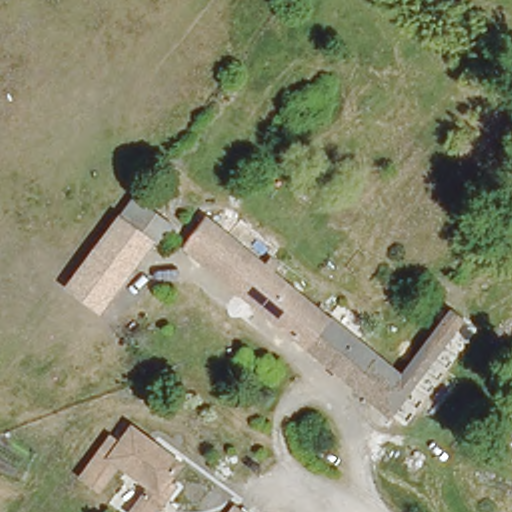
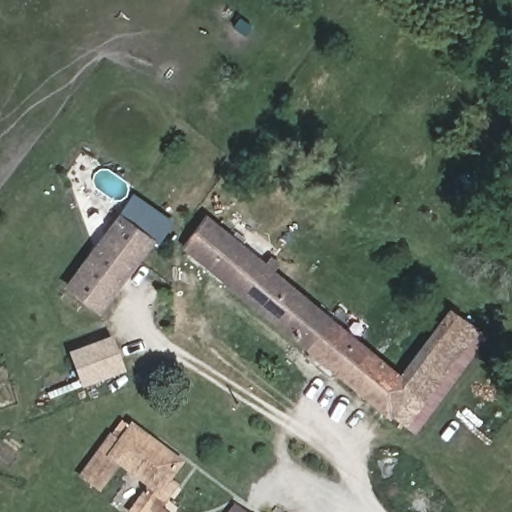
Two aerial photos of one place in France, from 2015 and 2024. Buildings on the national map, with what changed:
unchanged [(174,220),(158,244),(150,239),(97,310),(83,301),(68,291),(137,193),(174,220)]
unchanged [(415,382),(395,410),(183,247),(204,217),(263,262),(269,255),(277,260),(272,268),(271,270),(399,369),(407,374),(415,382)]
unchanged [(427,389),(416,381),(415,382),(407,374),(476,279),(485,286),(425,368),(437,377),(427,389)]
new [(88,386),(76,357),(113,342),(125,371),(88,386)]
unchanged [(130,507),(148,482),(117,459),(100,484),(82,470),(100,446),(107,436),(117,442),(130,425),(178,459),(165,479),(172,485),(166,496),(154,512),(136,512),(130,507)]
unchanged [(239,503),(251,512),(233,512),(239,503)]

